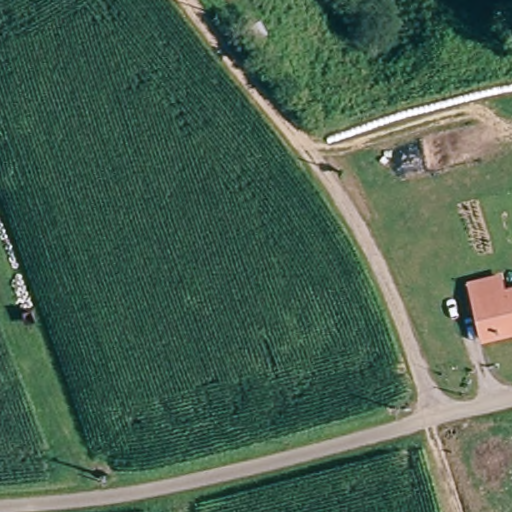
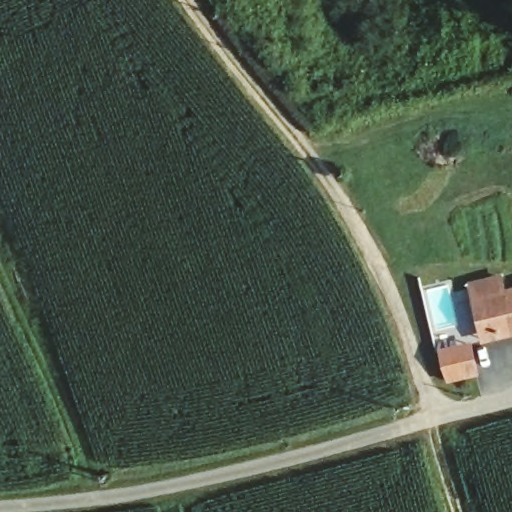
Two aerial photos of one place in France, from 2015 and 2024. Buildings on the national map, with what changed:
unchanged [(475,299),(471,283),(502,277),(505,291),(512,290),(512,333),(483,339),(475,299)]
new [(447,384),(439,348),(473,341),(480,376),(447,384)]

